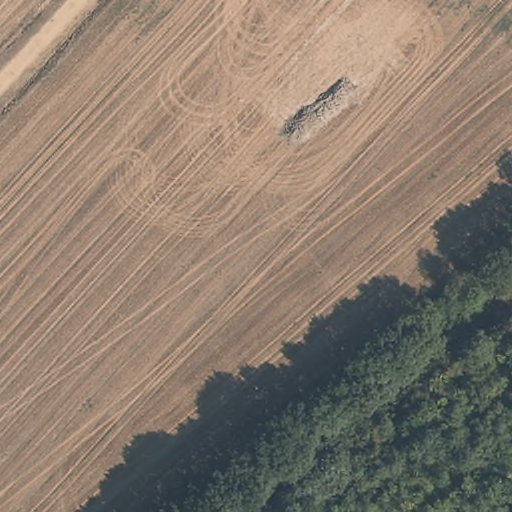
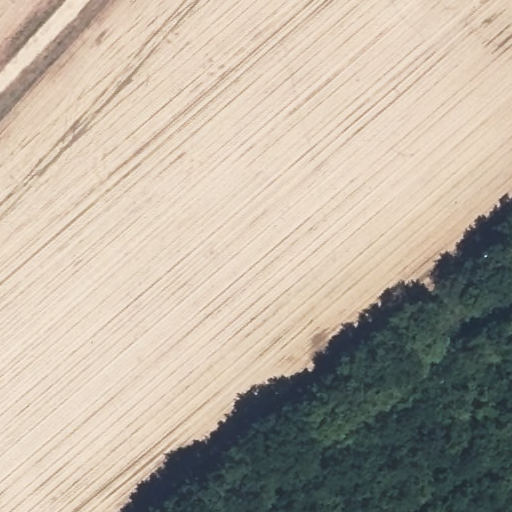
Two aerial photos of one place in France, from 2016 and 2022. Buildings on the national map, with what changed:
[]

